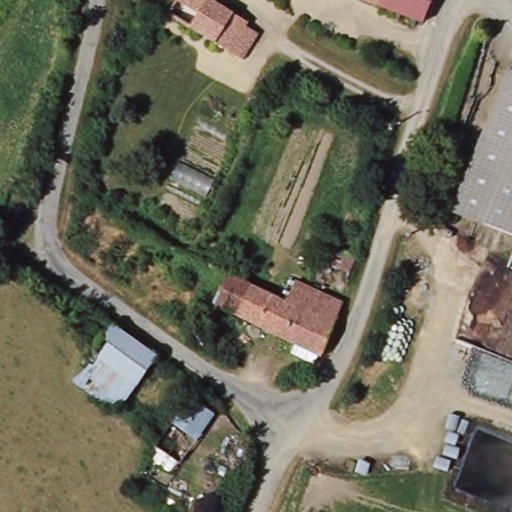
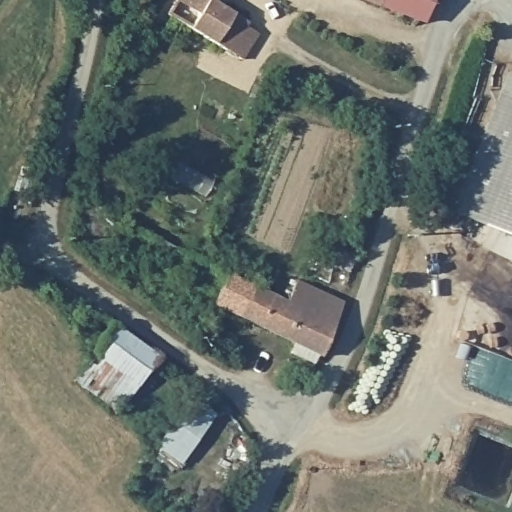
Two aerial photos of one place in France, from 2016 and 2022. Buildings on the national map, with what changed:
unchanged [(242,57),(231,51),(230,50),(165,6),(169,0),(213,0),(247,22),(246,25),(257,32),(242,57)]
unchanged [(423,17),(378,0),(430,0),(423,17)]
unchanged [(490,63),(512,72),(512,238),(436,208),(490,63)]
unchanged [(344,269),(311,255),(317,237),(349,250),(344,269)]
unchanged [(293,350),(297,339),(221,302),(235,274),(262,288),(287,302),(297,282),(300,283),(346,308),(342,318),(324,352),(319,351),(313,359),(302,353),(293,350)]
unchanged [(114,318),(162,356),(121,412),(73,384),(114,318)]

